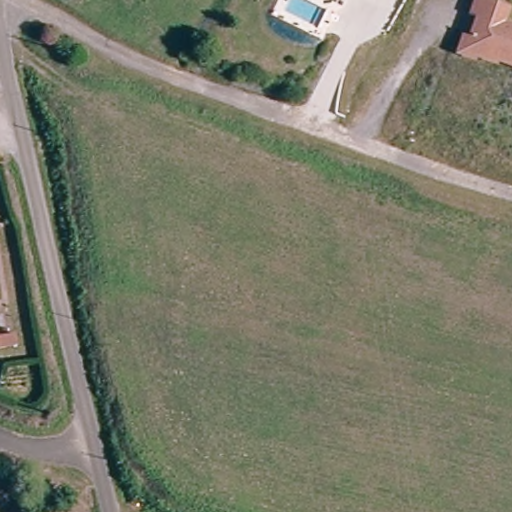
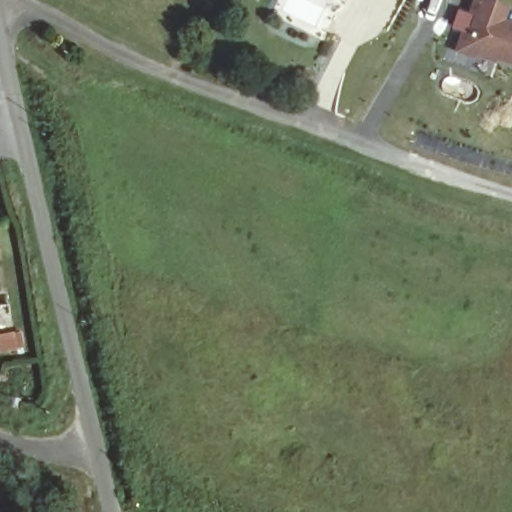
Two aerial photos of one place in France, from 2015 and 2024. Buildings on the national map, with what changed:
unchanged [(466,30),(472,33),(484,10),(477,6),(480,0),(502,0),(512,5),(512,9),(507,20),(512,22),(512,62),(477,45),(473,53),(458,45),(466,30)]

